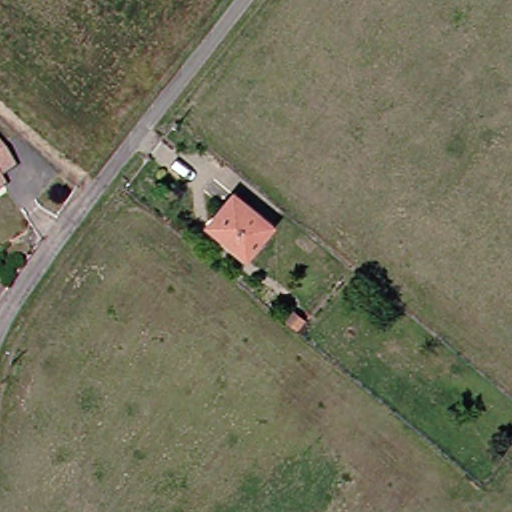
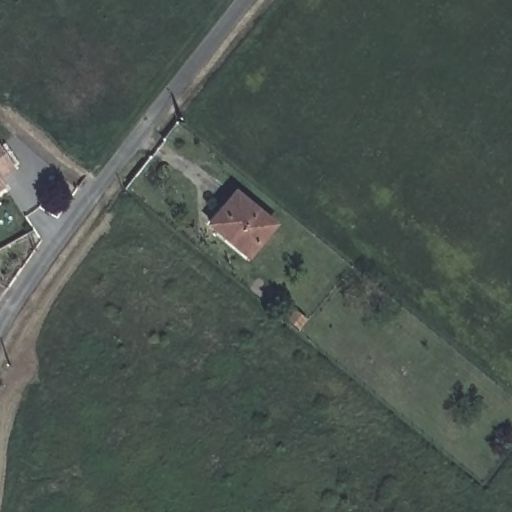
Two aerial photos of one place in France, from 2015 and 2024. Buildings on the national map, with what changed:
unchanged [(0,136),(16,166),(1,174),(3,177),(6,183),(0,186),(0,136)]
unchanged [(224,232),(222,235),(205,221),(230,190),(269,221),(247,250),(224,232)]

